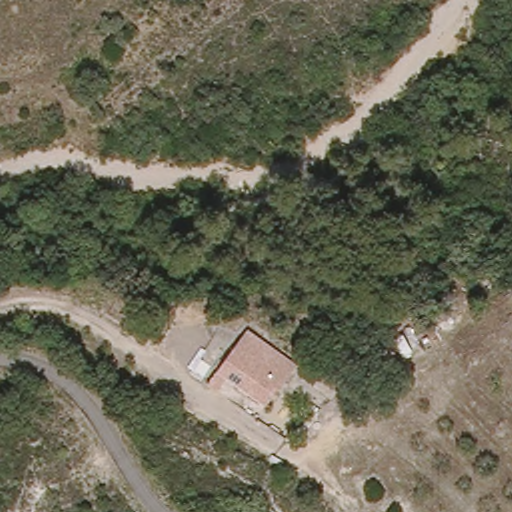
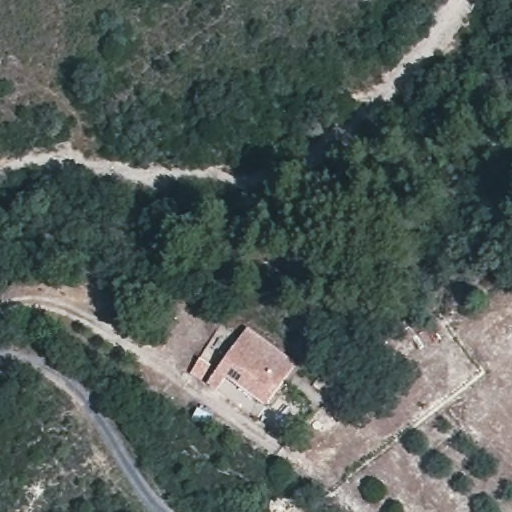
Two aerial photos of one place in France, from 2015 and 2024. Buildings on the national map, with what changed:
unchanged [(301,375),(267,415),(212,377),(242,333),(301,375)]

